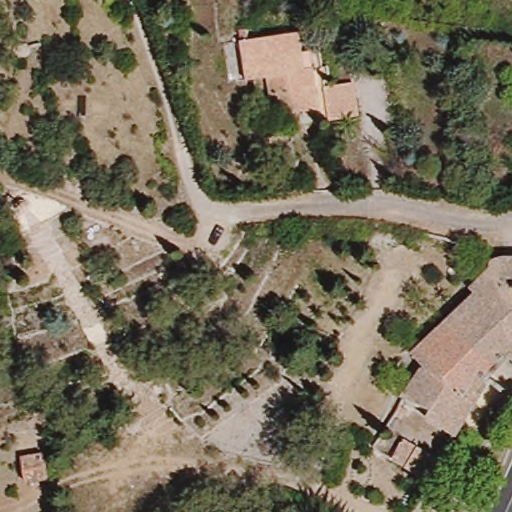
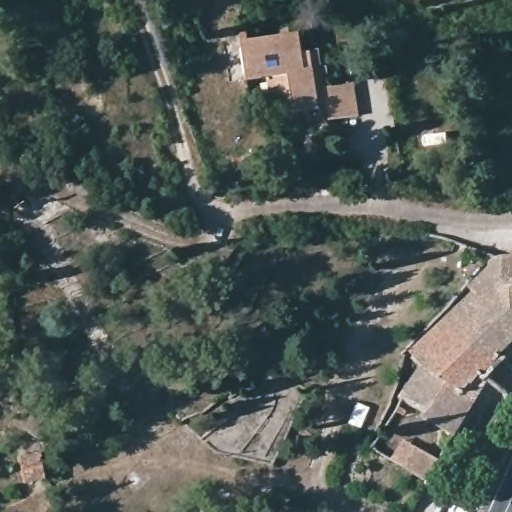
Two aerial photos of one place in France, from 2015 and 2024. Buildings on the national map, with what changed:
unchanged [(310,83),(313,104),(277,109),(275,90),(265,91),(262,72),(244,75),(239,36),(294,26),(299,64),(307,63),(310,83)]
unchanged [(352,111),(325,115),(320,82),(347,78),(352,111)]
unchanged [(30,110),(34,104),(40,103),(47,106),(48,113),(45,119),(38,120),(32,116),(30,110)]
unchanged [(485,384),(472,404),(455,435),(427,419),(432,411),(403,397),(421,368),(425,366),(413,354),(475,294),(471,289),(500,260),(512,259),(512,355),(485,384)]
unchanged [(440,461),(430,483),(405,468),(416,448),(440,461)]
unchanged [(47,479),(27,483),(22,458),(42,453),(47,479)]

